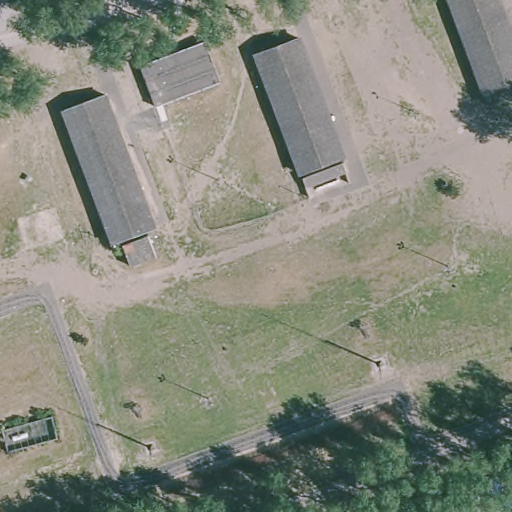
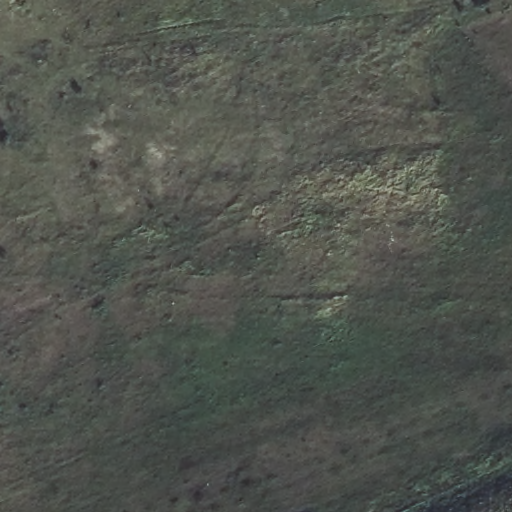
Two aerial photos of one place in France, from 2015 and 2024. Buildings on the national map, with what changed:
demolished [(512,33),(512,97),(489,104),(450,0),(500,0),(512,33)]
demolished [(302,49),(345,169),(301,185),(257,65),(302,49)]
demolished [(103,91),(152,222),(108,239),(59,107),(103,91)]
demolished [(146,233),(157,259),(134,268),(122,242),(146,233)]

